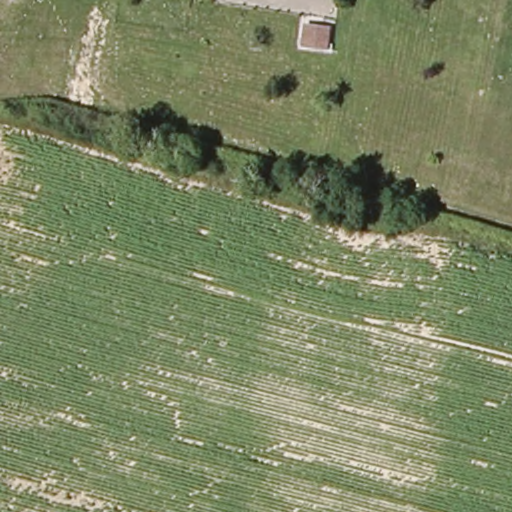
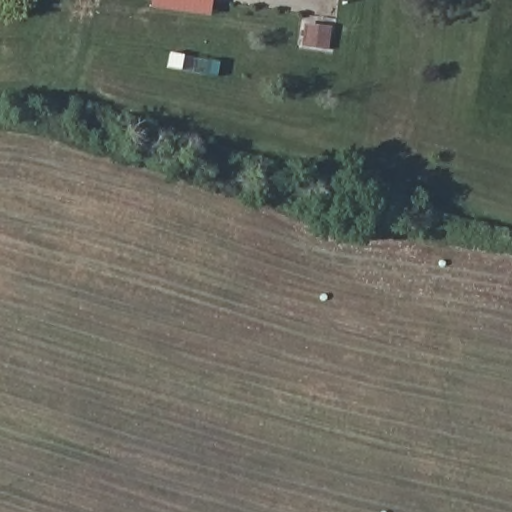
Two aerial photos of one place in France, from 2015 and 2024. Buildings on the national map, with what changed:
new [(150,8),(151,0),(212,0),(211,15),(150,8)]

